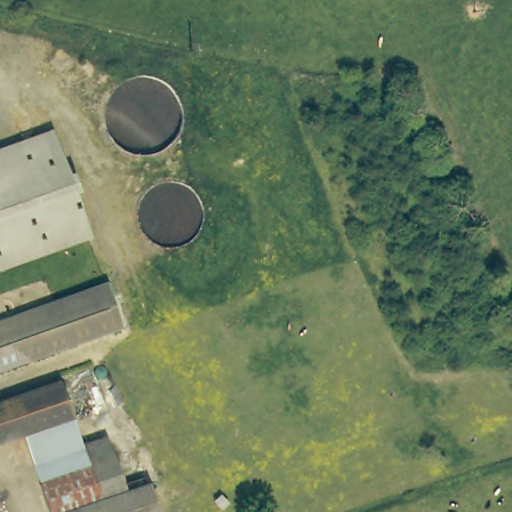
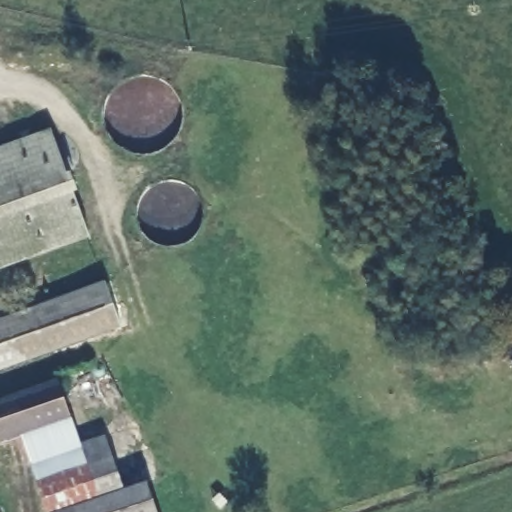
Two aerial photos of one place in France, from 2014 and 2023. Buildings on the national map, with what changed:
unchanged [(0,272),(0,154),(46,137),(84,241),(0,272)]
unchanged [(0,372),(0,324),(100,287),(116,329),(0,372)]
unchanged [(74,414),(27,431),(0,441),(0,401),(61,378),(74,414)]
unchanged [(27,431),(74,414),(84,441),(91,464),(45,481),(36,458),(27,431)]
unchanged [(159,512),(55,512),(45,481),(91,464),(136,448),(159,512)]

